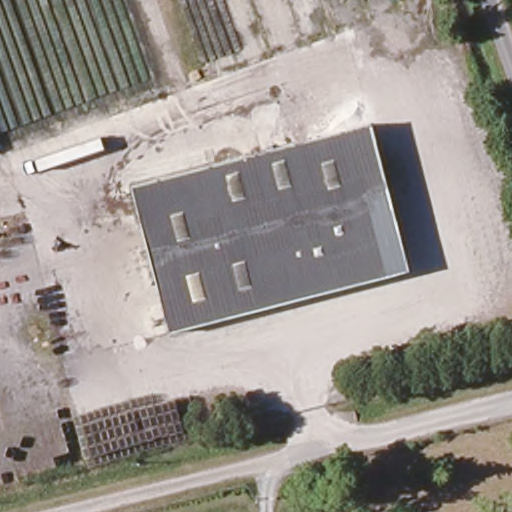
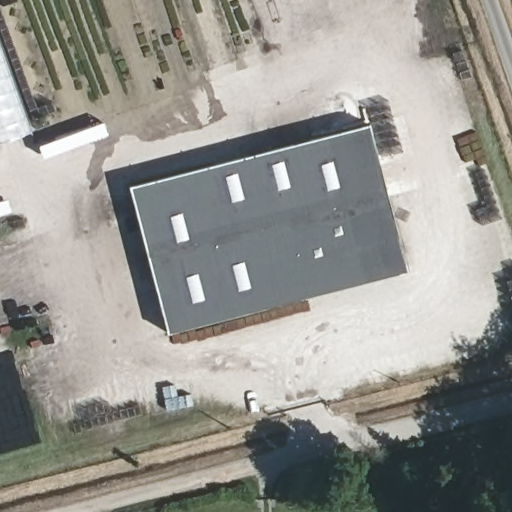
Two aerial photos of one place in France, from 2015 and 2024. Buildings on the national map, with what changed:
new [(0,143),(0,41),(33,132),(0,143)]
unchanged [(362,124),(400,268),(172,332),(136,184),(362,124)]

